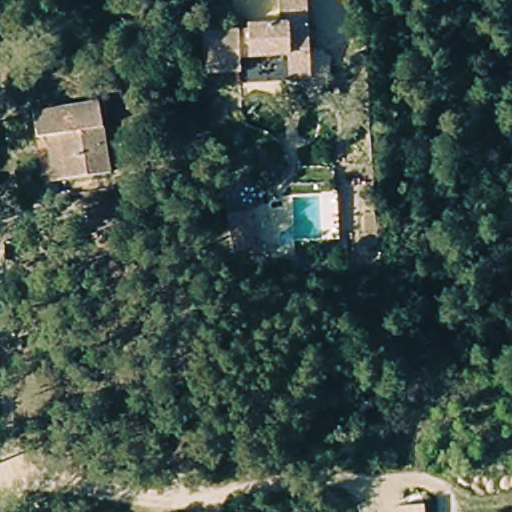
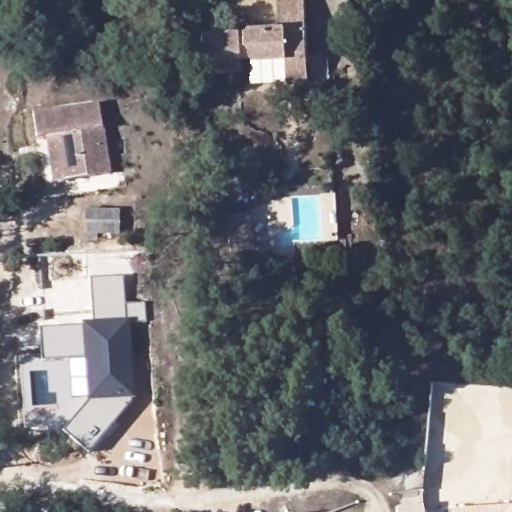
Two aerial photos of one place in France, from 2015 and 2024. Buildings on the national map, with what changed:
unchanged [(292,80),(290,62),(290,56),(241,61),(242,74),(208,77),(203,39),(249,35),(248,30),(280,27),(278,0),(305,0),(311,61),(312,79),(292,80)]
unchanged [(54,135),(43,137),(41,114),(109,102),(120,172),(73,179),(62,181),(54,135)]
unchanged [(272,217),(278,253),(258,257),(257,247),(252,221),(272,217)]
unchanged [(105,259),(107,232),(137,235),(137,254),(105,259)]
new [(82,327),(82,322),(94,321),(90,279),(122,277),(125,304),(144,302),(146,321),(130,323),(135,397),(133,397),(88,452),(63,430),(88,401),(84,358),(43,361),(40,329),(82,327)]
new [(512,503),(512,512),(456,512),(455,507),(512,503)]
unchanged [(422,506),(423,512),(397,512),(397,510),(422,506)]

